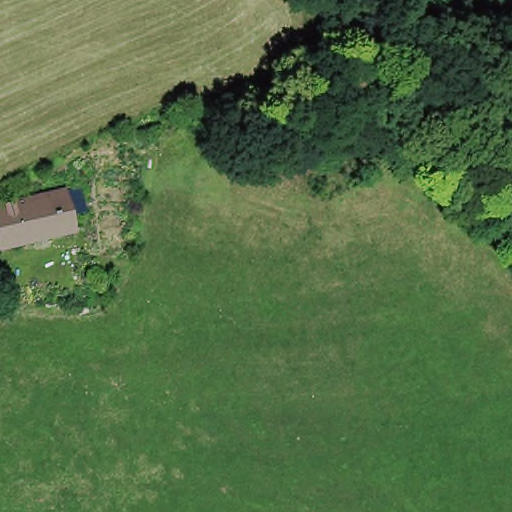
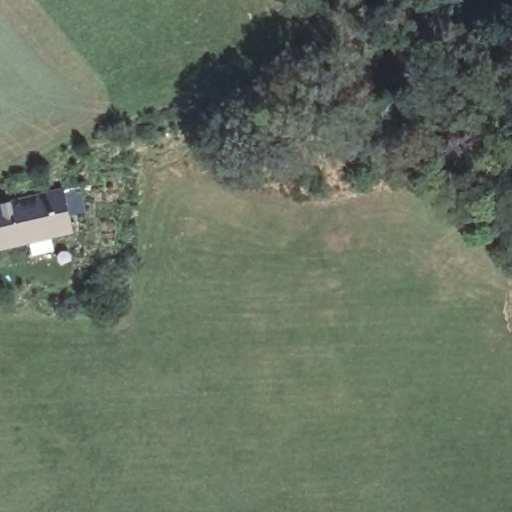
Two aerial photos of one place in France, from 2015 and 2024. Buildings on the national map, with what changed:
unchanged [(66,226),(0,240),(0,196),(57,182),(70,179),(75,205),(63,209),(65,215),(66,226)]

